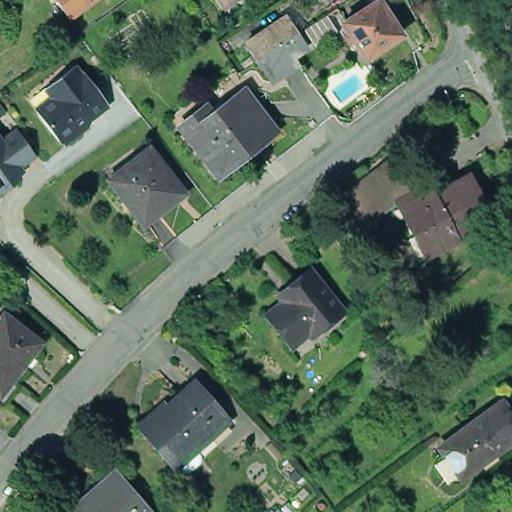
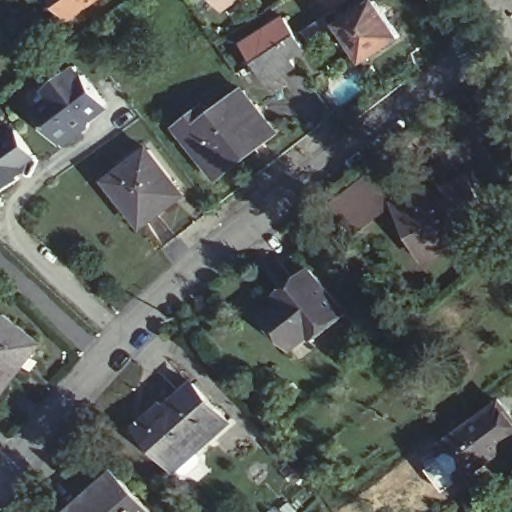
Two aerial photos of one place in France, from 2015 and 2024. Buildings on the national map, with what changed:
unchanged [(75,26),(52,0),(108,0),(75,26)]
unchanged [(376,62),(364,43),(359,47),(355,40),(360,36),(354,25),(387,0),(411,36),(376,62)]
unchanged [(267,45),(256,29),(287,9),(297,25),(308,40),(295,49),(299,55),(285,65),(270,75),(256,52),(267,45)]
unchanged [(140,40),(124,53),(112,37),(130,25),(140,40)]
unchanged [(48,99),(43,90),(80,61),(112,108),(64,147),(37,109),(48,99)]
unchanged [(267,144),(229,174),(195,131),(189,122),(217,101),(223,110),(254,85),(281,120),(287,129),(267,144)]
unchanged [(18,127),(35,157),(20,167),(25,176),(0,191),(0,131),(4,137),(18,127)]
unchanged [(180,189),(158,207),(162,212),(144,227),(108,181),(150,149),(180,189)]
unchanged [(397,218),(369,240),(344,210),(405,161),(427,189),(459,164),(495,210),(431,260),(397,218)]
unchanged [(284,340),(285,339),(271,321),(288,307),(283,301),(308,281),(309,282),(317,275),(352,320),(320,346),(315,340),(302,350),(296,355),(284,340)]
unchanged [(0,397),(0,318),(3,315),(42,344),(0,397)]
unchanged [(139,423),(163,401),(165,405),(196,378),(230,418),(176,466),(145,430),(139,423)]
unchanged [(462,480),(440,450),(490,412),(502,403),(510,415),(512,417),(512,443),(462,480)]
unchanged [(77,512),(121,473),(155,512),(77,512)]
unchanged [(471,512),(467,506),(480,498),(488,512),(471,512)]

